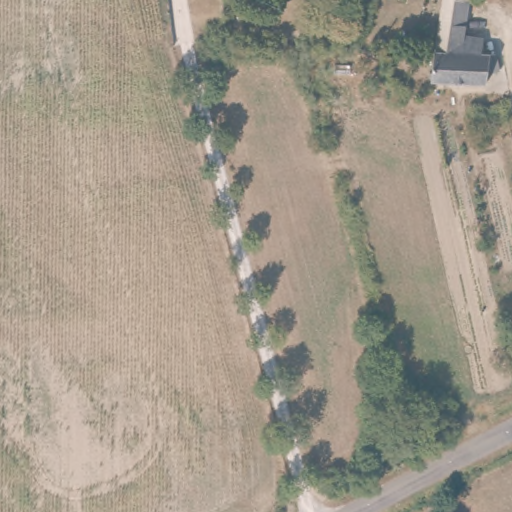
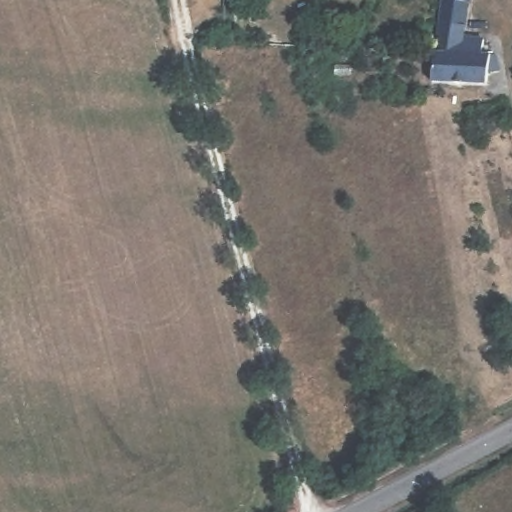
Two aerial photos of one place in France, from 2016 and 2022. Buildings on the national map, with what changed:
unchanged [(479,20),(475,62),(435,59),(441,0),(469,0),(467,19),(479,20)]
unchanged [(498,64),(500,75),(488,74),(487,92),(453,89),(432,86),(435,59),(475,62),(498,64)]

